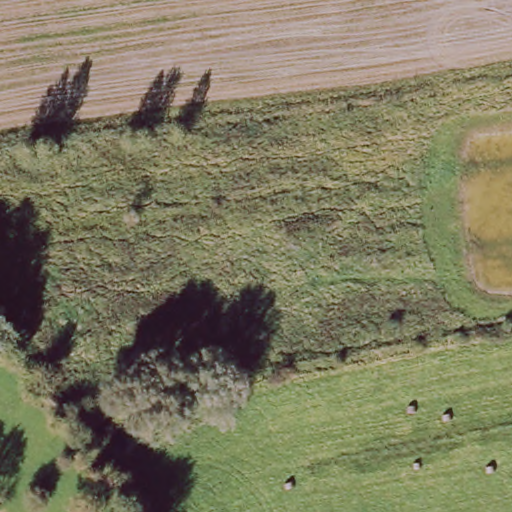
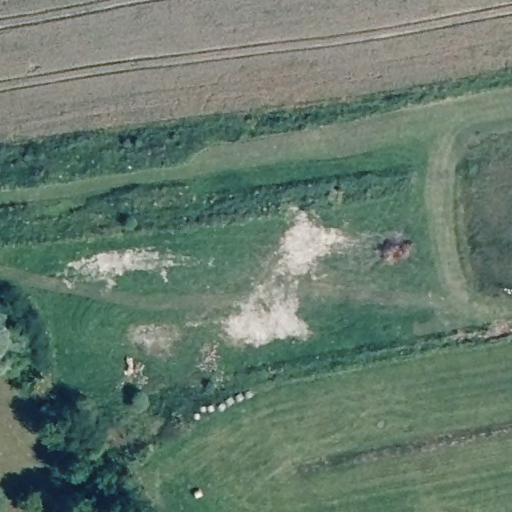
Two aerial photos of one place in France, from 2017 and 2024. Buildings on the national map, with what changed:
[]

